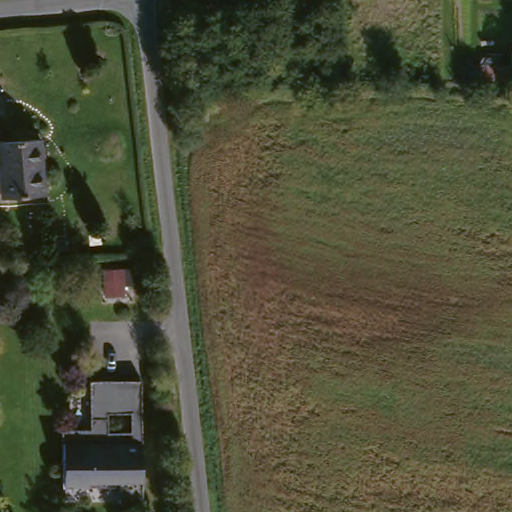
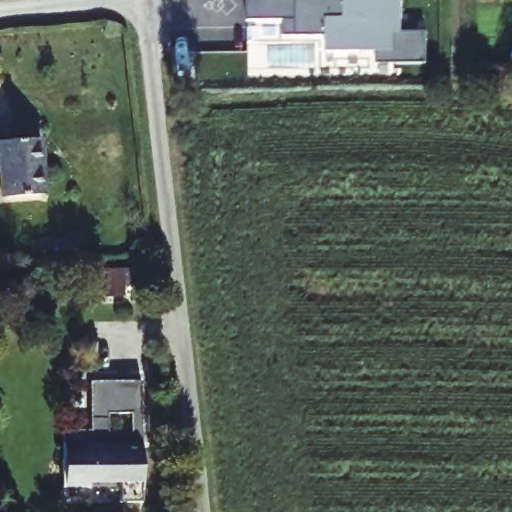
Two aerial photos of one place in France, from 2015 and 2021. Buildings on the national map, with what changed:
new [(247,0),(401,0),(403,34),(424,33),(425,63),(377,64),(377,54),(327,54),(326,37),(284,37),(284,21),(247,21),(247,0)]
unchanged [(0,185),(0,143),(36,140),(42,193),(1,197),(0,185)]
new [(124,258),(126,275),(116,276),(117,286),(98,288),(95,262),(124,258)]
unchanged [(62,434),(91,430),(84,383),(133,375),(151,494),(127,498),(126,482),(71,491),(62,434)]

